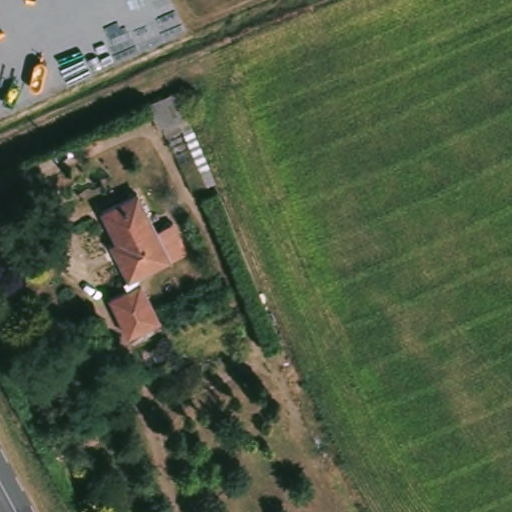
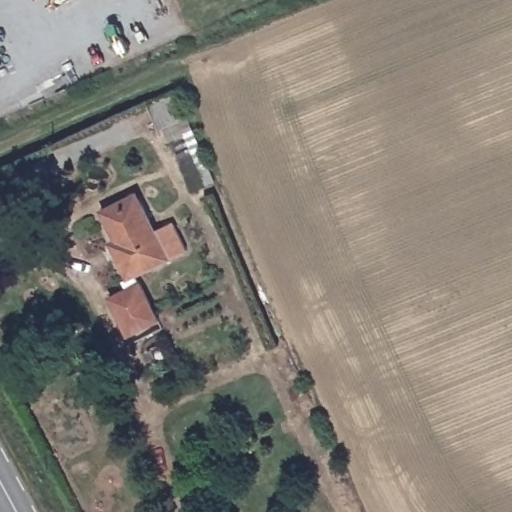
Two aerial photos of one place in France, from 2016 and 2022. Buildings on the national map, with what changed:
unchanged [(213,189),(201,194),(177,128),(158,135),(149,111),(176,100),(213,189)]
unchanged [(139,278),(160,326),(124,340),(109,298),(127,290),(123,280),(128,278),(116,246),(121,244),(105,212),(141,197),(157,234),(177,227),(189,257),(139,278)]

